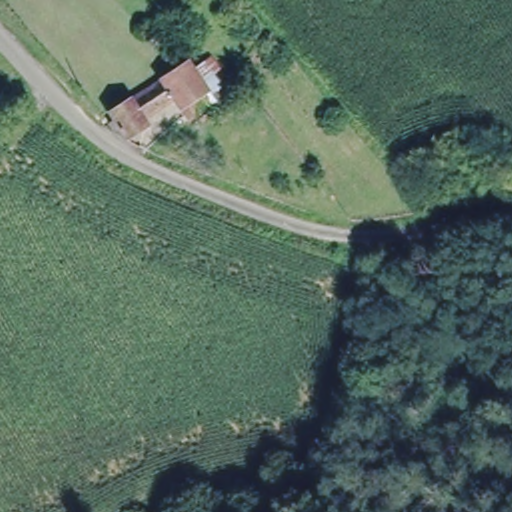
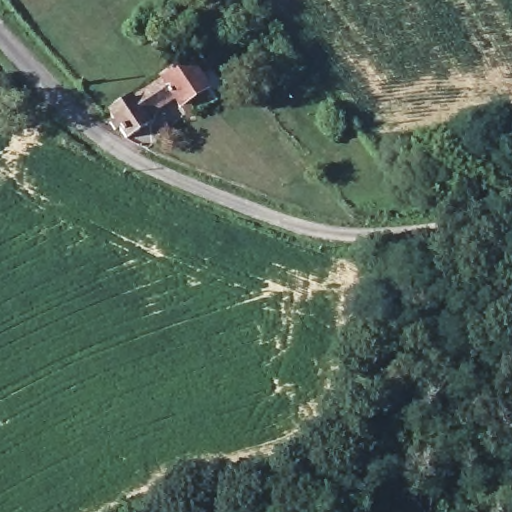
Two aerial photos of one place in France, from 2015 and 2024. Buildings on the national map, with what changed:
unchanged [(217,87),(187,105),(180,97),(149,116),(153,122),(129,136),(101,117),(113,108),(195,63),(217,87)]

